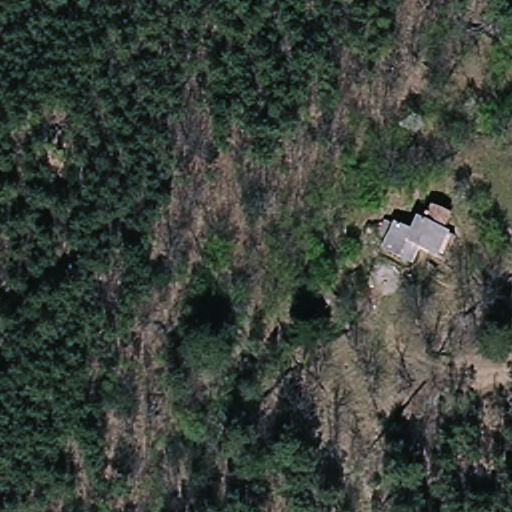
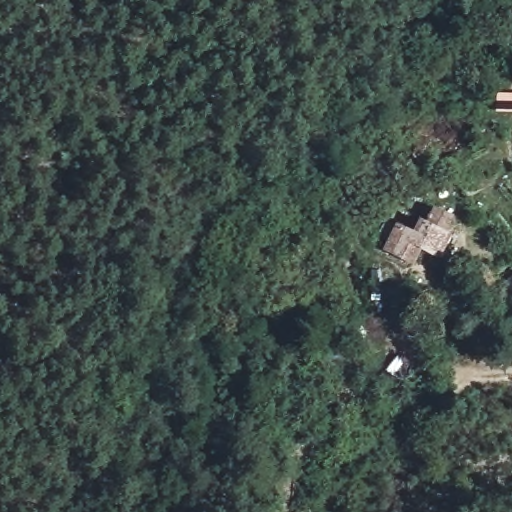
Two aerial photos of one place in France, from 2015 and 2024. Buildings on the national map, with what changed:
unchanged [(396,221),(415,229),(420,217),(427,219),(433,207),(452,217),(445,232),(455,235),(442,261),(419,251),(413,264),(382,249),(396,221)]

